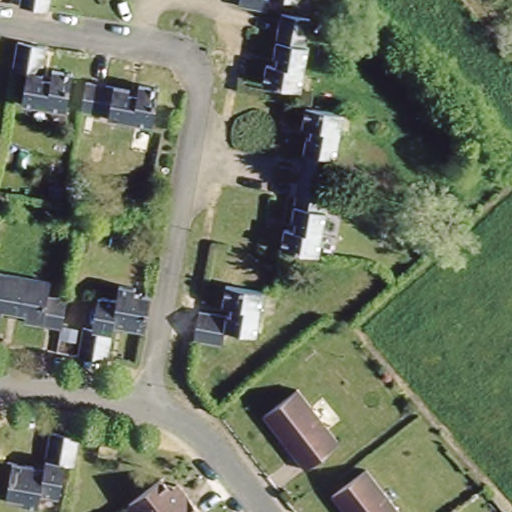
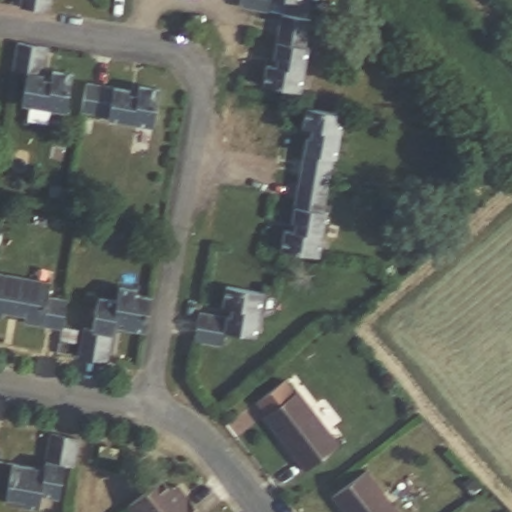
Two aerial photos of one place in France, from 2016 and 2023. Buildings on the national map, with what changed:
unchanged [(47,10),(22,6),(23,0),(48,0),(47,10)]
unchanged [(263,12),(235,7),(236,0),(266,0),(263,12)]
unchanged [(296,4),(294,3),(277,0),(297,0),(296,4)]
unchanged [(301,42),(307,44),(299,87),(262,80),(265,62),(274,64),(275,55),(272,54),(280,10),(293,12),(306,15),(301,42)]
unchanged [(12,42),(40,46),(34,79),(45,80),(47,71),(66,75),(60,112),(18,105),(23,75),(7,72),(12,42)]
unchanged [(127,95),(137,96),(138,88),(158,91),(152,129),(108,121),(108,119),(81,115),(85,85),(128,91),(127,95)]
unchanged [(334,150),(331,149),(321,206),(326,207),(318,250),(279,243),(283,225),(292,226),(294,216),(290,215),(304,129),(308,130),(309,120),(301,119),(304,100),(342,106),(334,150)]
unchanged [(42,295),(61,298),(56,328),(35,325),(36,318),(0,312),(0,275),(45,282),(42,295)]
unchanged [(143,331),(112,325),(104,362),(75,357),(81,328),(89,330),(97,297),(114,301),(115,294),(117,285),(132,288),(131,293),(150,296),(143,331)]
unchanged [(254,337),(223,333),(221,343),(191,339),(196,311),(227,317),(229,305),(222,304),(225,285),(262,292),(254,337)]
unchanged [(262,415),(295,390),(335,445),(302,470),(262,415)]
unchanged [(77,462),(67,460),(61,495),(44,491),(43,499),(42,505),(26,503),(26,497),(9,495),(10,487),(12,461),(46,465),(52,429),(79,433),(83,434),(77,462)]
unchanged [(393,512),(343,512),(330,495),(361,471),(393,512)]
unchanged [(170,475),(180,488),(185,485),(194,497),(201,507),(204,512),(144,512),(137,502),(170,475)]

